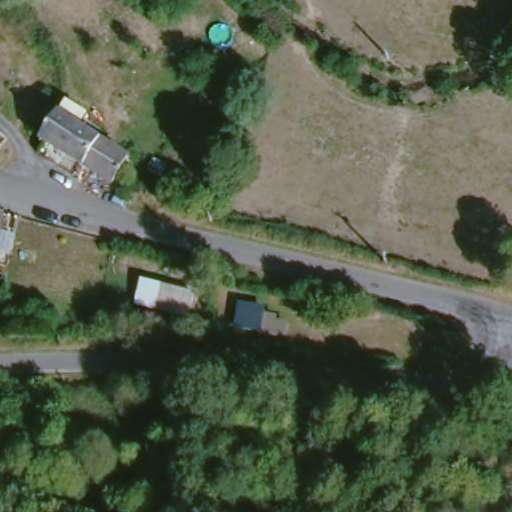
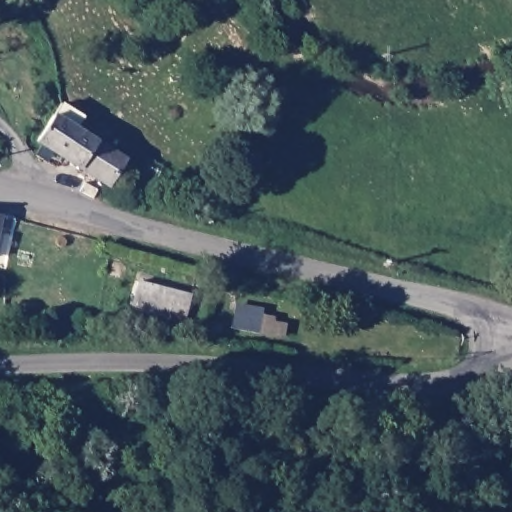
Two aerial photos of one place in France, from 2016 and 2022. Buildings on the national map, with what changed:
unchanged [(115,189),(82,176),(88,168),(63,151),(46,139),(70,105),(95,120),(89,129),(135,161),(115,189)]
unchanged [(200,302),(196,322),(139,311),(145,290),(200,302)]
unchanged [(303,313),(296,346),(237,332),(246,298),(303,313)]
unchanged [(19,395),(9,397),(10,404),(0,405),(0,384),(19,381),(19,395)]

